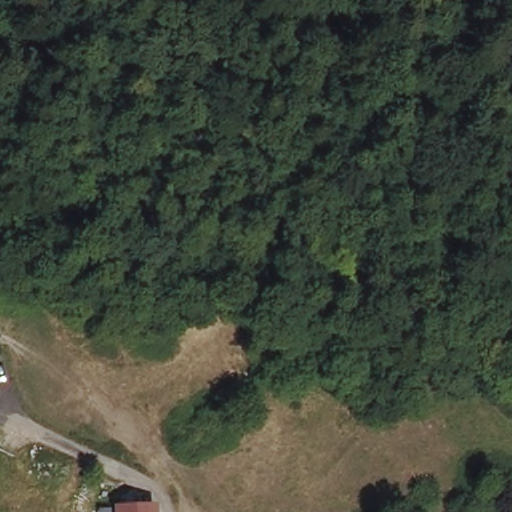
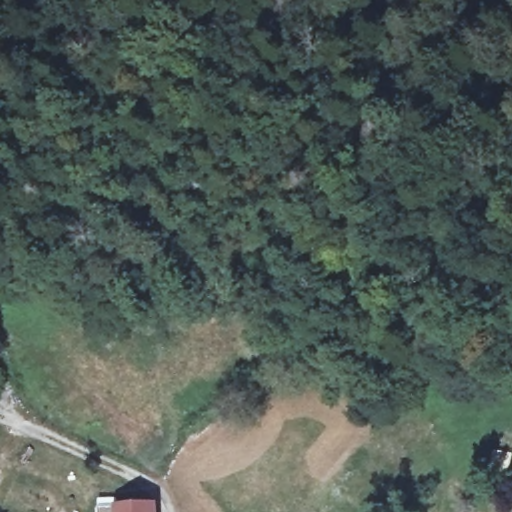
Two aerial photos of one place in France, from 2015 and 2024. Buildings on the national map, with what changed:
unchanged [(150,506),(151,512),(96,512),(95,508),(150,506)]

